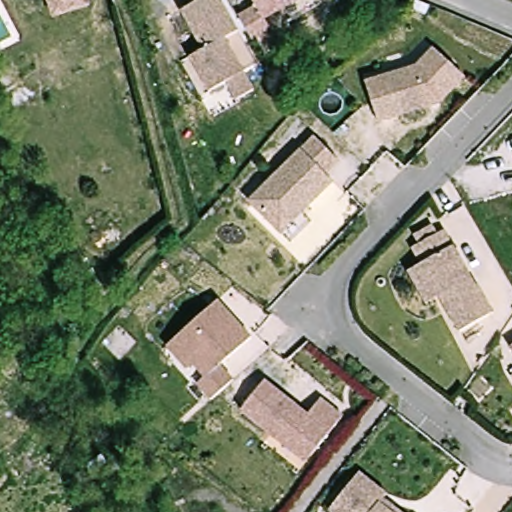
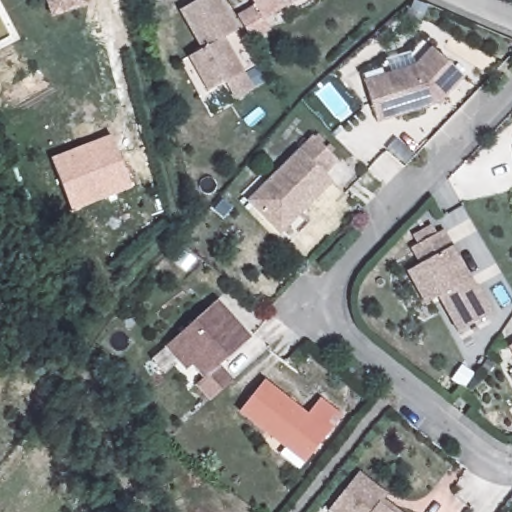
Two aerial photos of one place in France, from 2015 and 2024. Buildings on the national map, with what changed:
unchanged [(56,18),(50,0),(88,0),(90,9),(56,18)]
unchanged [(246,0),(297,0),(259,22),(266,33),(248,43),(234,20),(251,10),(246,0)]
unchanged [(264,98),(246,109),(236,92),(219,103),(197,69),(209,61),(185,24),(218,2),(244,40),(231,49),(264,98)]
unchanged [(416,64),(433,46),(464,75),(439,102),(435,99),(429,105),(381,123),(371,98),(366,83),(385,76),(416,64)]
new [(132,189),(71,212),(50,158),(111,135),(132,189)]
unchanged [(276,229),(249,202),(314,136),(339,160),(325,174),(333,182),(309,205),(281,233),(276,229)]
unchanged [(478,284),(493,313),(456,332),(438,296),(424,303),(408,269),(421,263),(413,246),(419,243),(414,234),(433,224),(438,233),(444,229),(471,278),(475,285),(478,284)]
unchanged [(168,346),(173,340),(218,300),(252,338),(221,365),(234,380),(212,399),(198,384),(206,377),(194,364),(188,369),(168,346)]
unchanged [(509,349),(512,346),(512,353),(509,349)]
unchanged [(511,377),(512,376),(512,379),(511,377)]
unchanged [(291,452),(241,411),(264,382),(306,416),(319,399),(341,417),(311,454),(306,463),(291,452)]
unchanged [(329,509),(359,472),(387,494),(384,498),(401,512),(333,512),(329,509)]

